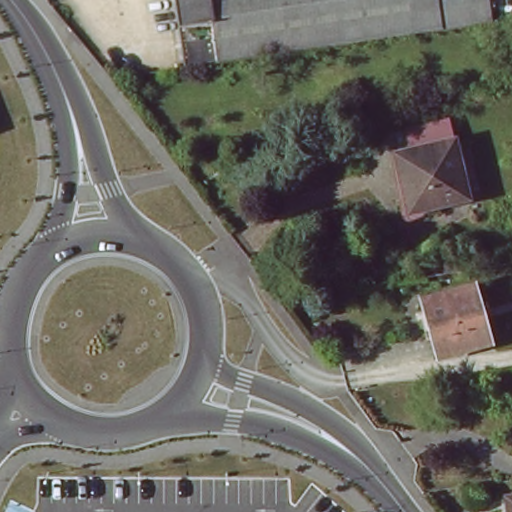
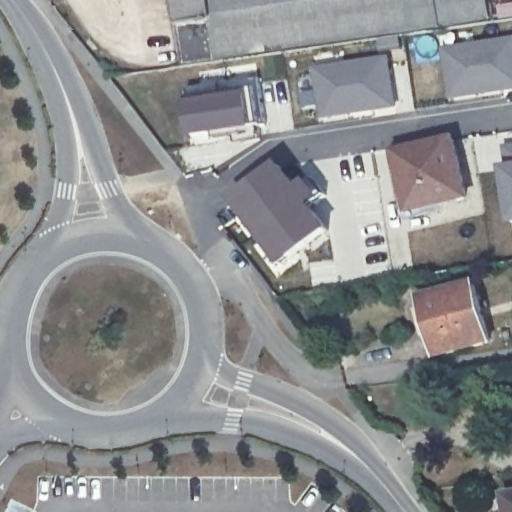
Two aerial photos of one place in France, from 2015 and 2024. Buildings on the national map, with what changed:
unchanged [(177,0),(412,0),(416,27),(186,61),(177,0)]
unchanged [(416,27),(412,0),(436,0),(440,25),(416,27)]
unchanged [(489,0),(491,17),(456,22),(453,5),(485,0),(489,0)]
new [(503,22),(501,7),(512,5),(512,21),(503,22)]
new [(512,36),(512,92),(450,104),(441,47),(512,36)]
new [(316,90),(314,67),(393,56),(399,110),(322,121),(320,107),(305,110),(301,92),(316,90)]
new [(254,92),(259,128),(193,140),(188,103),(254,92)]
unchanged [(452,139),(465,195),(408,207),(396,151),(452,139)]
new [(512,143),(512,224),(511,224),(503,165),(502,145),(512,143)]
new [(281,162),(301,186),(311,179),(325,197),(314,206),(330,229),(282,266),(231,200),(281,162)]
unchanged [(470,287),(480,346),(444,351),(435,293),(470,287)]
unchanged [(512,493),(512,512),(506,512),(503,494),(512,493)]

